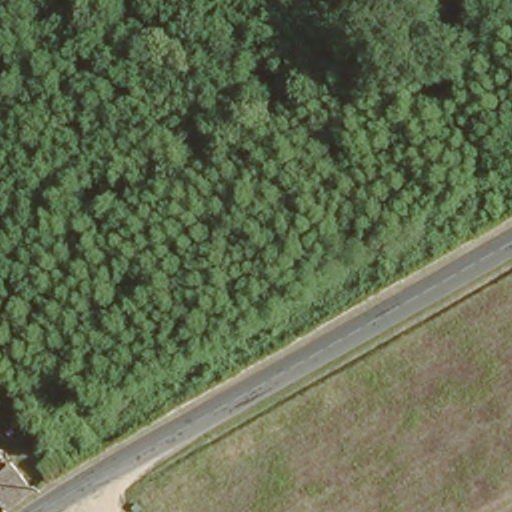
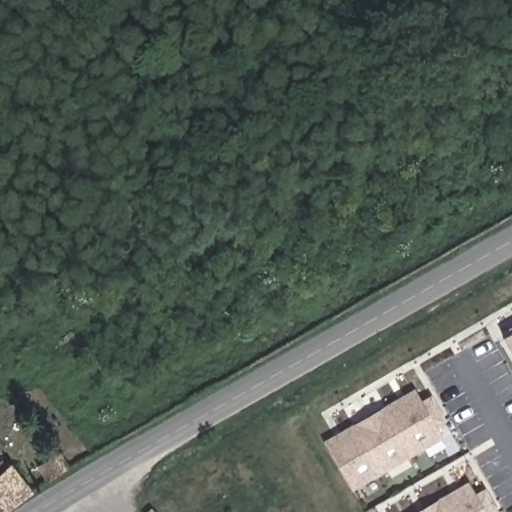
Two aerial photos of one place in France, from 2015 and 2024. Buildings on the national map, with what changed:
new [(512,337),(512,353),(505,342),(512,337)]
new [(353,490),(324,440),(414,389),(443,439),(353,490)]
unchanged [(71,452),(93,441),(103,435),(110,447),(100,453),(79,465),(71,452)]
unchanged [(21,467),(30,458),(45,472),(21,487),(0,502),(0,462),(8,454),(21,467)]
new [(485,512),(415,512),(468,482),(485,512)]

